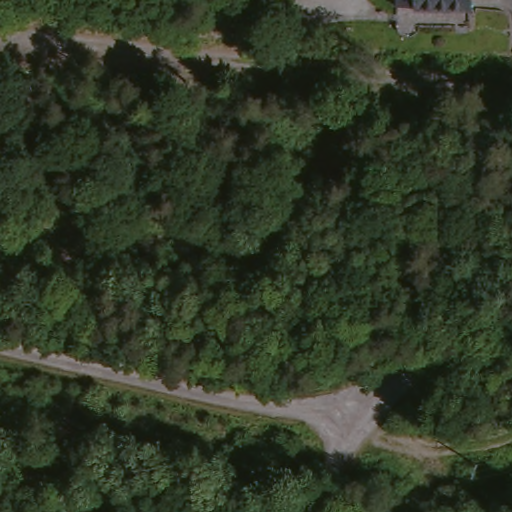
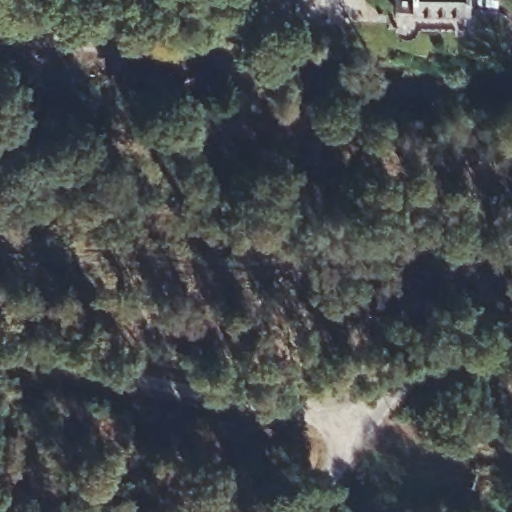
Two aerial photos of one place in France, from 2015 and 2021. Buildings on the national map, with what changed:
unchanged [(459,12),(406,7),(388,7),(387,0),(461,0),(459,12)]

